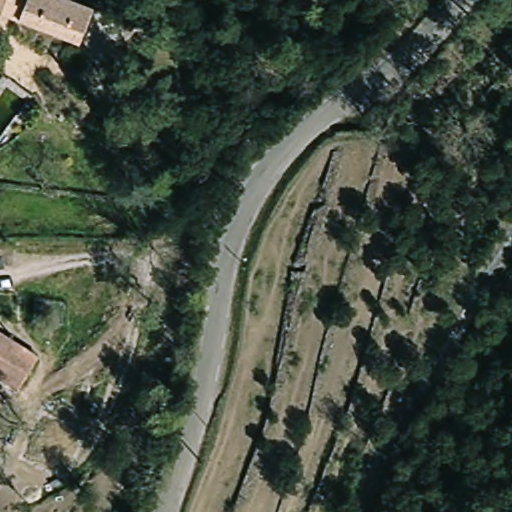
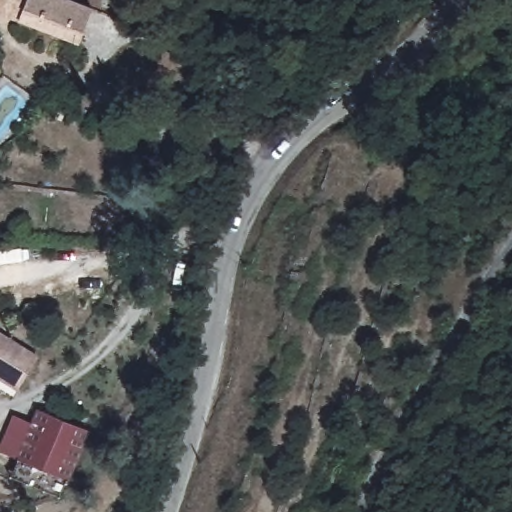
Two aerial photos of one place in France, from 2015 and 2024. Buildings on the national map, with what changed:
unchanged [(91,7),(77,44),(0,15),(0,0),(71,0),(91,7)]
unchanged [(2,340),(42,368),(20,398),(0,383),(0,339),(2,340)]
new [(61,497),(12,475),(19,460),(0,451),(0,446),(13,415),(32,422),(38,409),(90,431),(61,497)]

